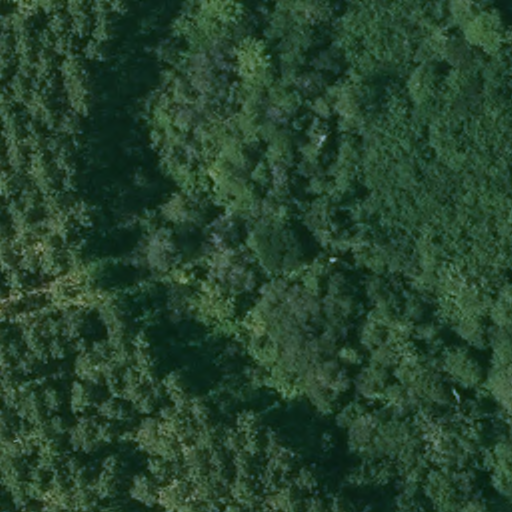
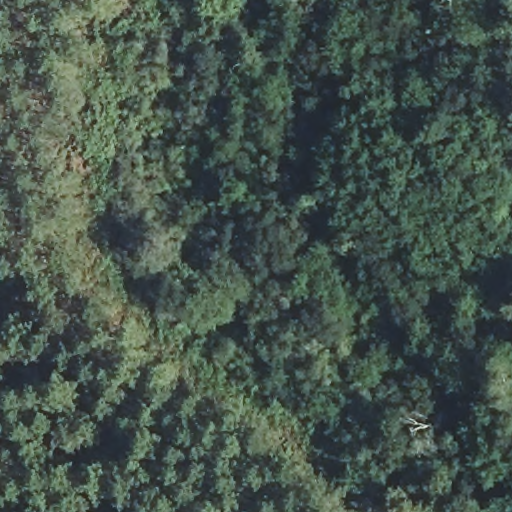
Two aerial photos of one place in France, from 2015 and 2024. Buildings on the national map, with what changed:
[]

